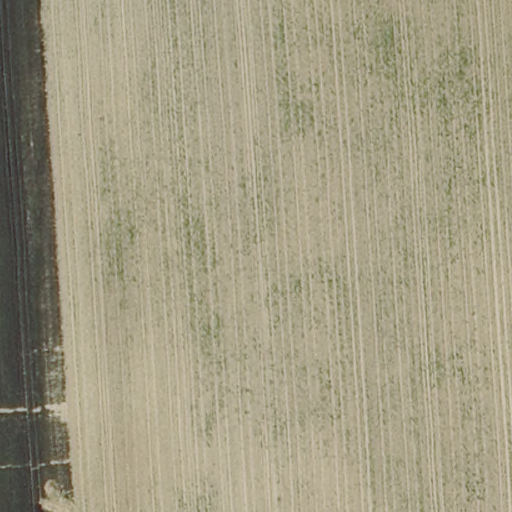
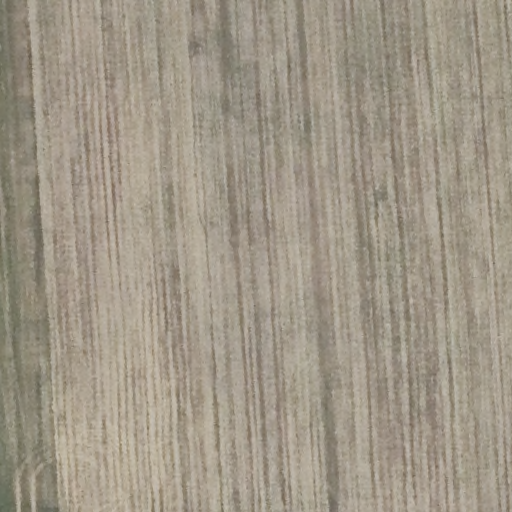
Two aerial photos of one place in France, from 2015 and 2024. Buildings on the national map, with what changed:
[]

